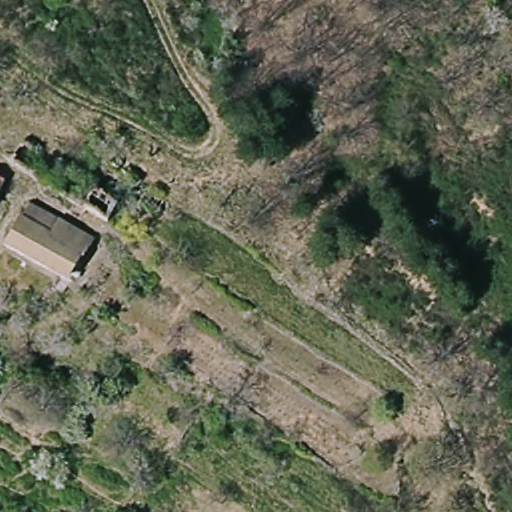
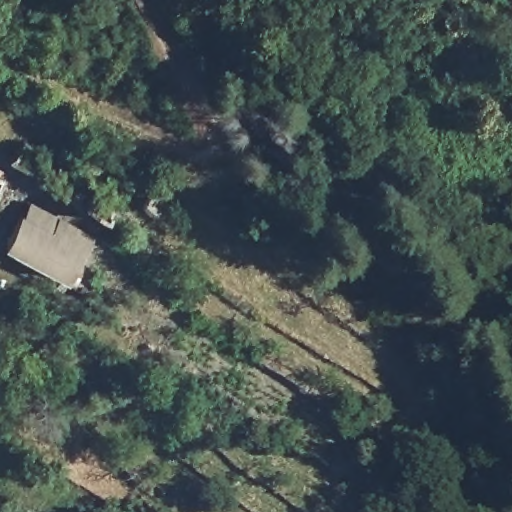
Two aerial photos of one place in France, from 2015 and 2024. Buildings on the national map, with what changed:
unchanged [(0,196),(0,174),(7,178),(0,196)]
unchanged [(15,217),(20,221),(30,204),(95,241),(71,283),(0,243),(0,240),(15,217)]

